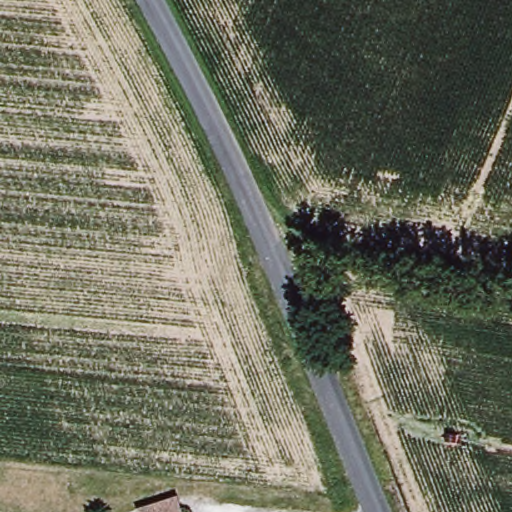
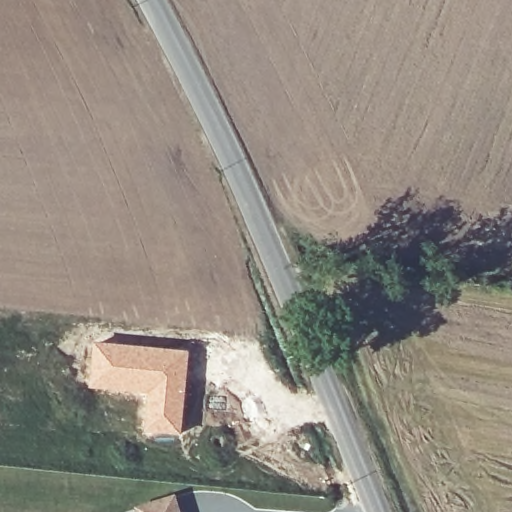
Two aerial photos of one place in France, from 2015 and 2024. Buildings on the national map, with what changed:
new [(93,341),(191,351),(182,437),(144,433),(147,396),(89,388),(93,341)]
unchanged [(131,510),(171,496),(178,512),(132,512),(131,510)]

